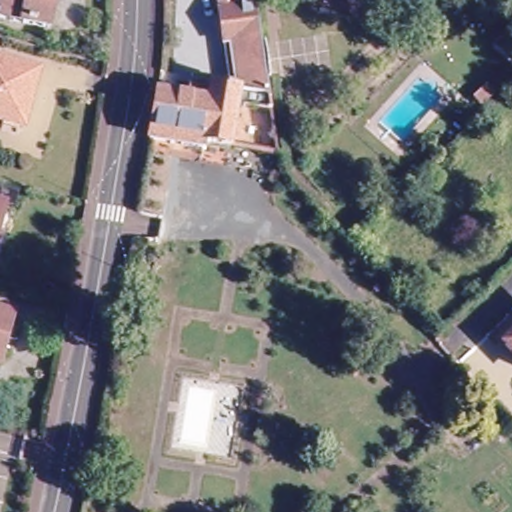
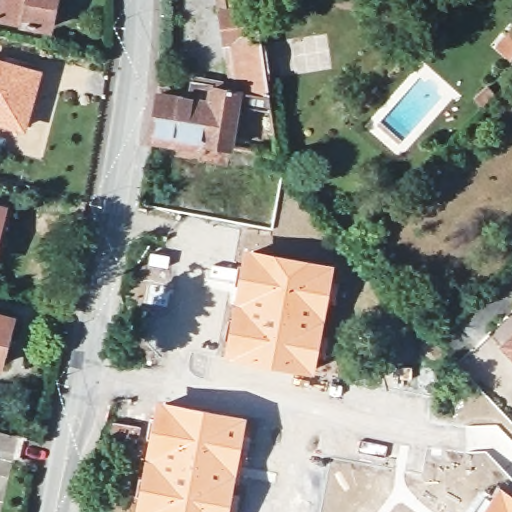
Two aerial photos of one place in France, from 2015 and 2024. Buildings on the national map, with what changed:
unchanged [(54,33),(14,25),(14,24),(0,21),(0,0),(60,0),(54,33)]
unchanged [(187,82),(188,77),(226,84),(220,44),(215,12),(213,0),(250,0),(251,7),(257,46),(261,74),(265,98),(235,94),(226,148),(199,144),(198,149),(145,140),(153,94),(170,97),(171,89),(185,91),(187,82)]
unchanged [(512,28),(512,60),(496,46),(512,28)]
unchanged [(23,132),(0,126),(0,68),(38,78),(23,132)]
unchanged [(483,106),(476,98),(487,87),(494,95),(483,106)]
unchanged [(0,214),(0,203),(3,204),(0,214)]
new [(243,249),(291,255),(335,263),(329,301),(313,372),(222,356),(243,249)]
unchanged [(141,315),(126,312),(131,292),(145,295),(141,315)]
unchanged [(11,318),(0,359),(0,315),(11,318)]
unchanged [(512,339),(512,352),(506,346),(512,339)]
new [(156,399),(247,415),(228,512),(134,512),(139,483),(156,399)]
new [(113,422),(141,427),(136,447),(123,445),(124,442),(109,441),(113,422)]
new [(498,485),(512,493),(512,512),(478,512),(480,508),(498,485)]

